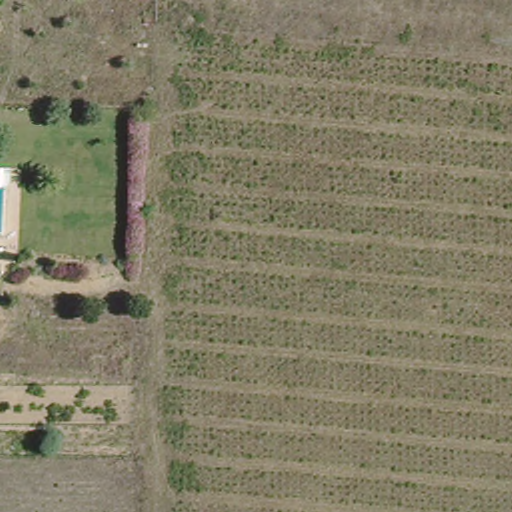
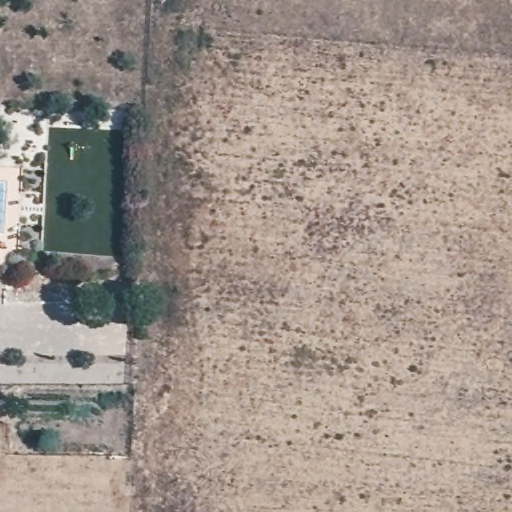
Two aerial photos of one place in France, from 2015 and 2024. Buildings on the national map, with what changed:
[]

